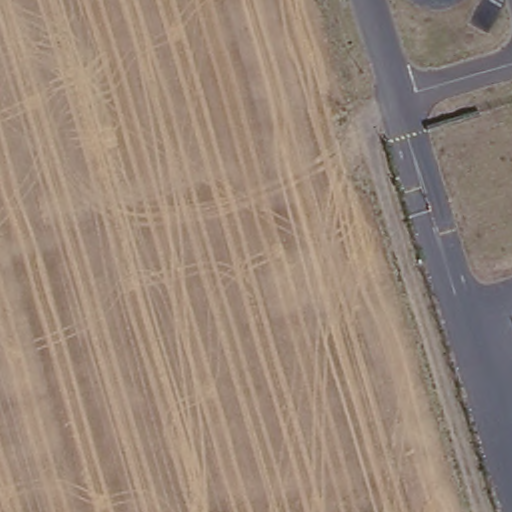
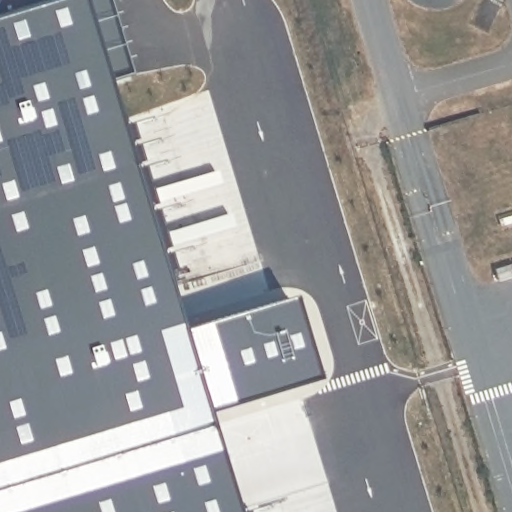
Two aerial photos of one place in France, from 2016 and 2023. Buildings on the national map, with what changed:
new [(90,83),(165,333),(276,299),(298,375),(192,409),(222,512),(0,512),(0,0),(94,0),(116,76),(90,83)]

